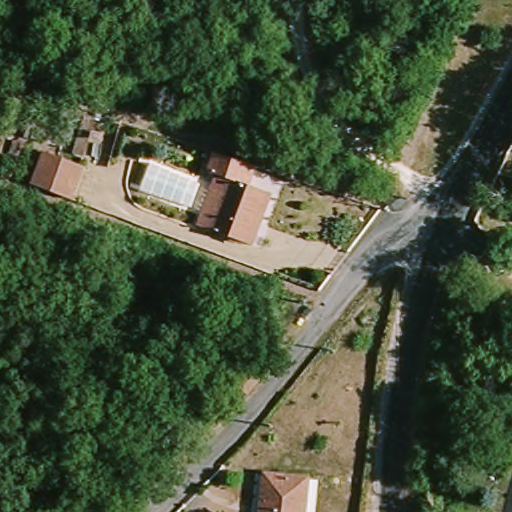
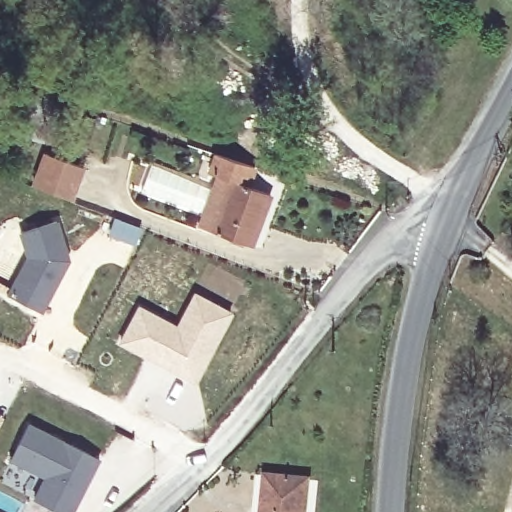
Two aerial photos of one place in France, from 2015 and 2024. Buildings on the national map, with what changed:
unchanged [(51,147),(89,160),(78,196),(39,183),(51,147)]
unchanged [(213,184),(203,182),(212,151),(254,164),(246,190),(266,197),(251,246),(212,232),(199,228),(213,184)]
new [(26,258),(18,234),(53,221),(67,260),(42,313),(8,297),(26,258)]
new [(138,311),(176,328),(192,294),(228,311),(195,381),(148,359),(120,346),(138,311)]
new [(98,456),(72,512),(63,512),(34,499),(44,476),(8,461),(24,425),(98,456)]
unchanged [(258,512),(259,476),(305,479),(303,512),(258,512)]

